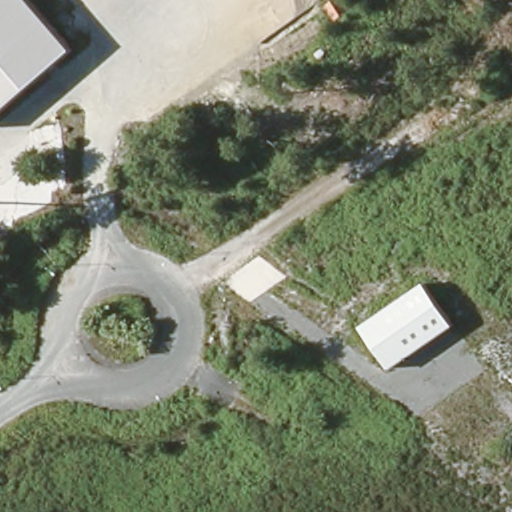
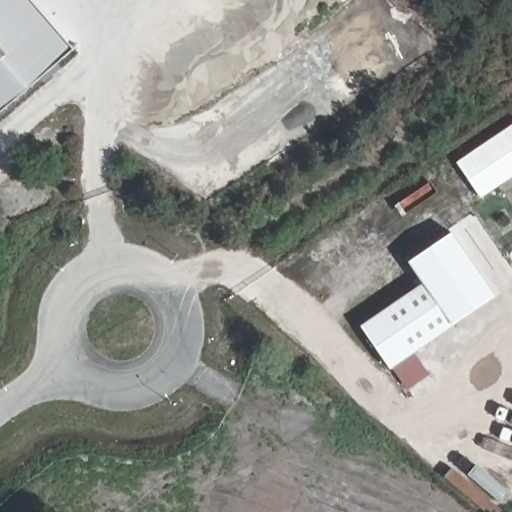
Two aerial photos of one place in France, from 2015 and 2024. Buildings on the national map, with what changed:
unchanged [(0,114),(0,0),(32,0),(74,49),(0,114)]
new [(512,175),(480,196),(457,163),(512,126),(512,175)]
new [(408,263),(452,233),(495,297),(455,325),(427,284),(425,286),(408,263)]
unchanged [(391,369),(362,328),(427,284),(455,325),(391,369)]

